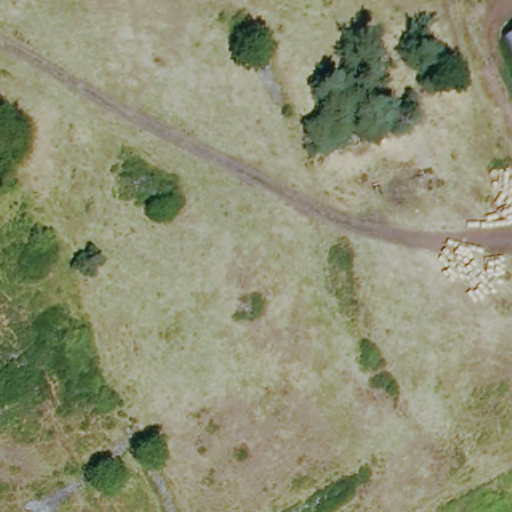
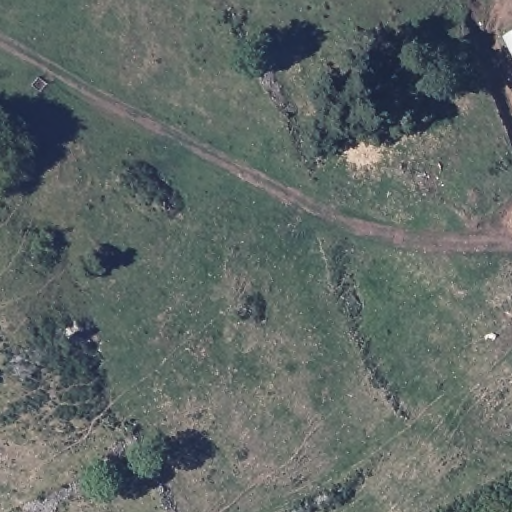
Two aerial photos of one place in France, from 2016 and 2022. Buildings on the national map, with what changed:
unchanged [(512,34),(512,48),(507,37),(512,34)]

